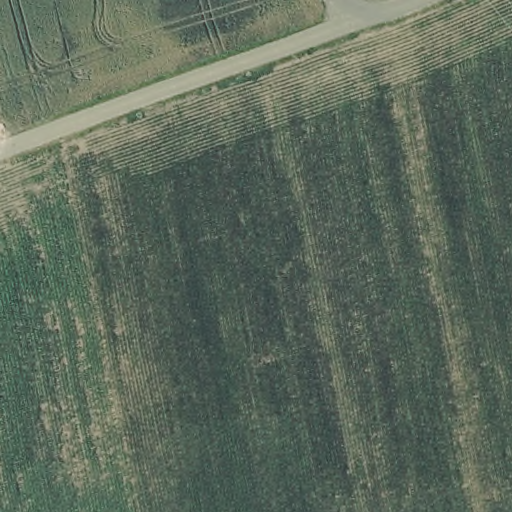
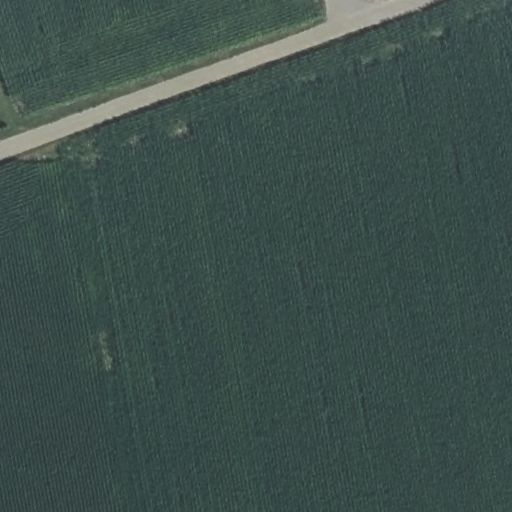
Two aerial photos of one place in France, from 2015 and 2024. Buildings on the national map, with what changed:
[]

